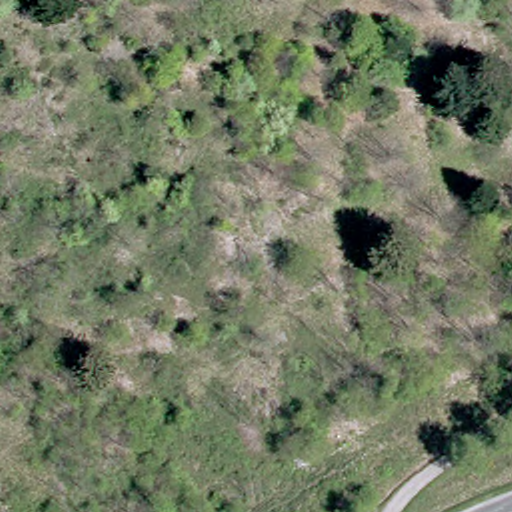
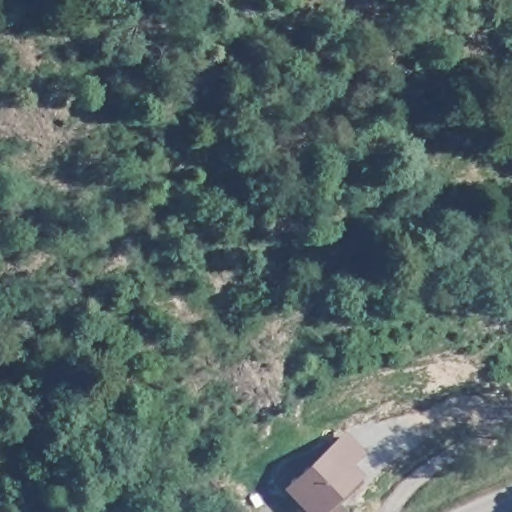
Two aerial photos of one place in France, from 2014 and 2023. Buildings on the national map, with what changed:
new [(366,453),(354,464),(363,474),(321,512),(302,512),(281,489),(346,431),(366,453)]
unchanged [(337,504),(345,512),(330,512),(337,504)]

